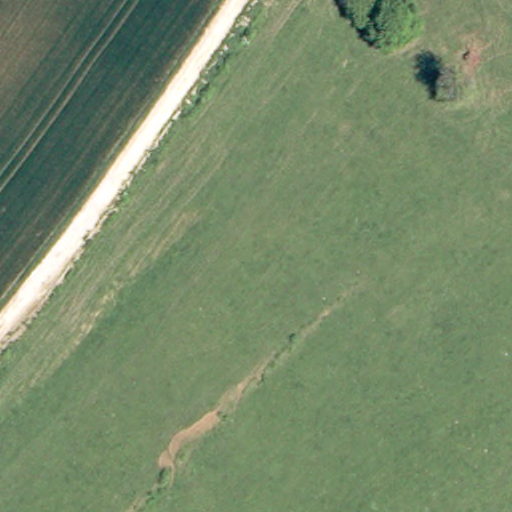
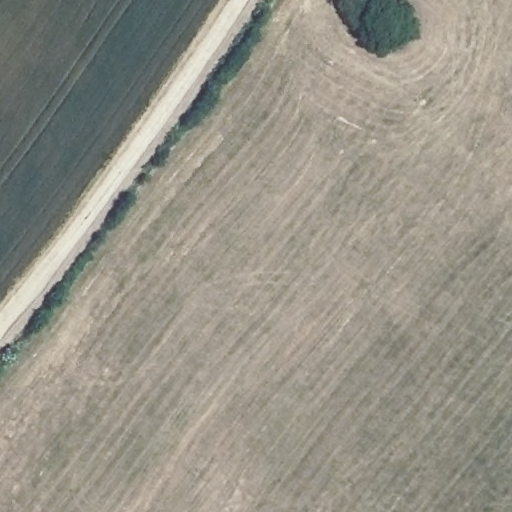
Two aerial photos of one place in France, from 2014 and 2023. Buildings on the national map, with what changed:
[]

